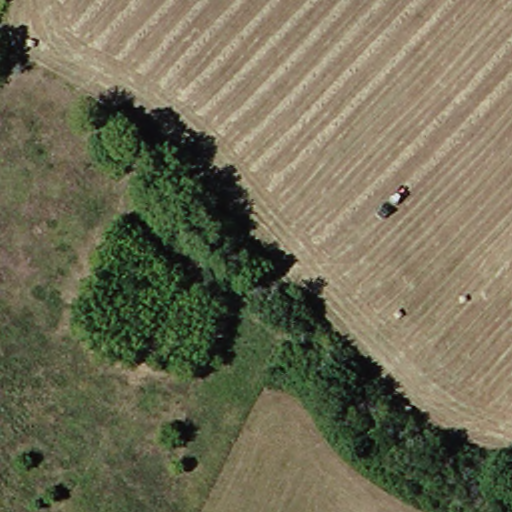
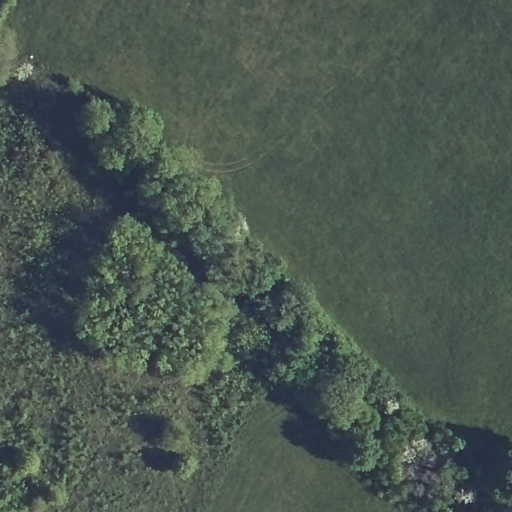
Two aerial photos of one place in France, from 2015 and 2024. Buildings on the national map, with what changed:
[]

